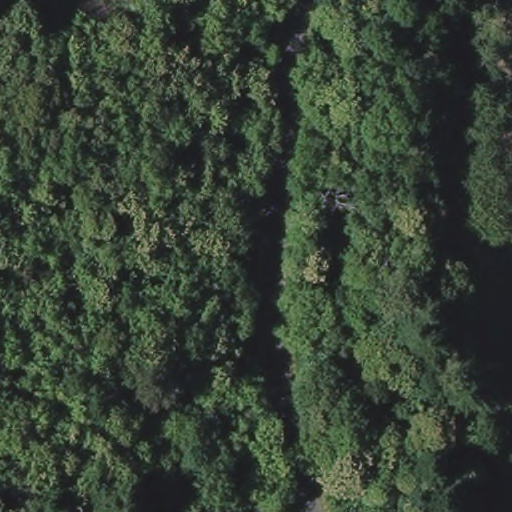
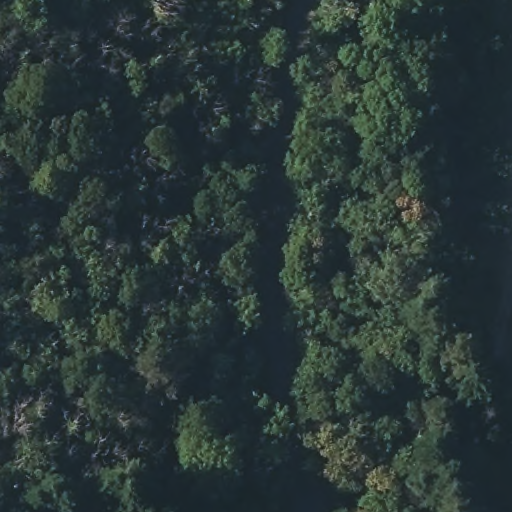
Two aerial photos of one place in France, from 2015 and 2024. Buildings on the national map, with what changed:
unchanged [(417,312),(415,357),(398,356),(385,356),(388,315),(395,314),(417,312)]

